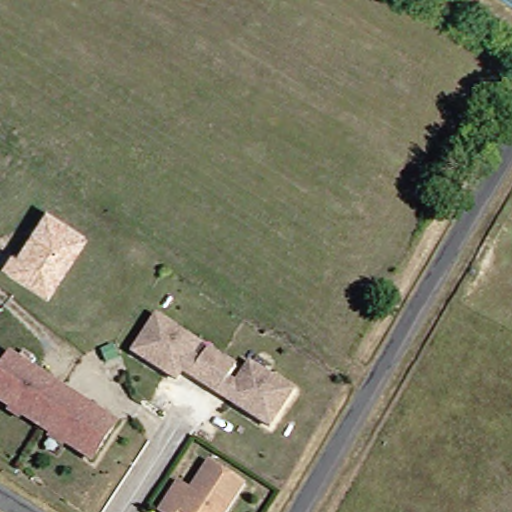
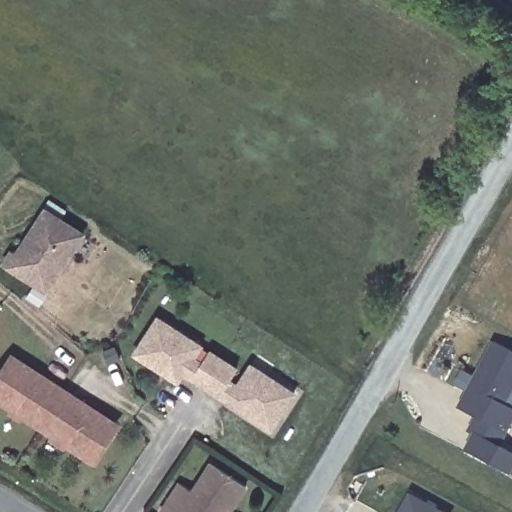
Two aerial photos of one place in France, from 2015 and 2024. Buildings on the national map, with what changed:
unchanged [(86,232),(47,295),(1,263),(10,248),(16,251),(45,205),(86,232)]
unchanged [(205,385),(183,373),(180,381),(133,355),(155,316),(202,343),(192,357),(201,362),(209,347),(225,356),(205,385)]
new [(467,411),(460,407),(467,394),(495,342),(512,351),(512,424),(507,433),(500,446),(512,453),(512,471),(510,474),(466,450),(476,432),(470,429),(477,417),(467,411)]
unchanged [(120,358),(107,365),(101,354),(114,348),(120,358)]
unchanged [(43,422),(0,394),(0,370),(12,351),(65,385),(43,422)]
unchanged [(237,365),(229,379),(237,383),(251,361),(296,387),(274,426),(205,385),(225,356),(237,365)]
unchanged [(117,419),(94,455),(43,422),(65,385),(117,419)]
unchanged [(250,482),(231,512),(184,512),(182,510),(181,512),(166,512),(163,510),(182,480),(196,488),(213,458),(250,482)]
new [(409,496),(437,512),(401,512),(409,496)]

